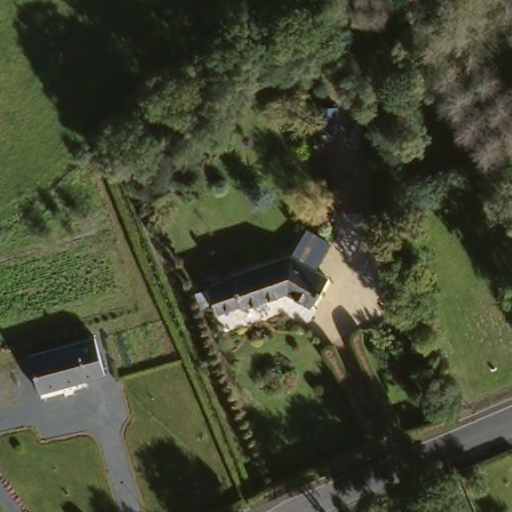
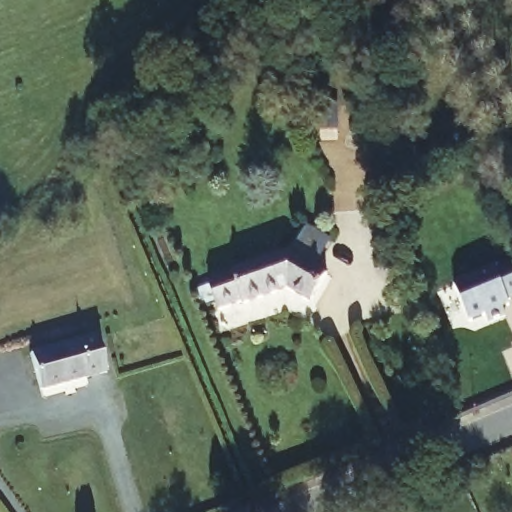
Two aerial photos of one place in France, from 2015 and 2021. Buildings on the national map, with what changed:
unchanged [(305,300),(288,286),(241,302),(238,299),(215,306),(208,280),(230,273),(231,268),(293,250),(310,226),(332,241),(314,266),(325,273),(305,300)]
new [(494,266),(495,268),(511,261),(512,263),(512,296),(508,298),(509,302),(503,305),(505,312),(488,320),(485,312),(469,320),(454,283),(494,266)]
unchanged [(95,336),(105,373),(42,390),(31,352),(95,336)]

